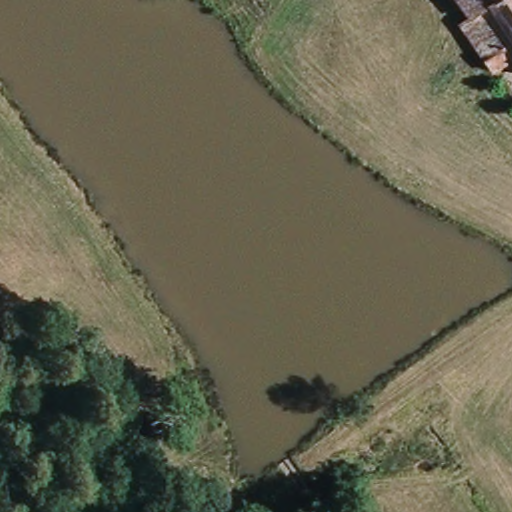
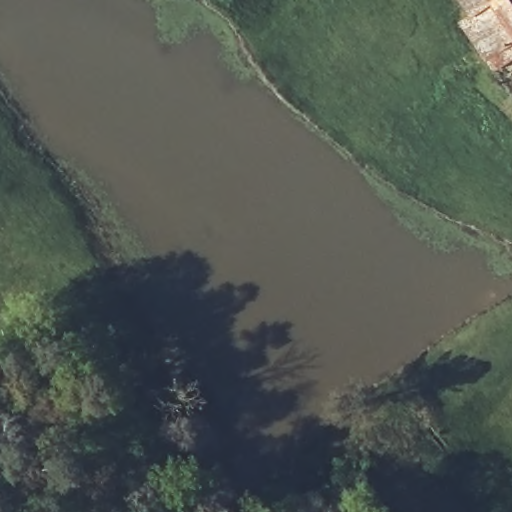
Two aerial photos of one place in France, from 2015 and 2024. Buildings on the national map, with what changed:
unchanged [(512,47),(484,66),(453,19),(464,13),(456,0),(512,0),(512,47)]

